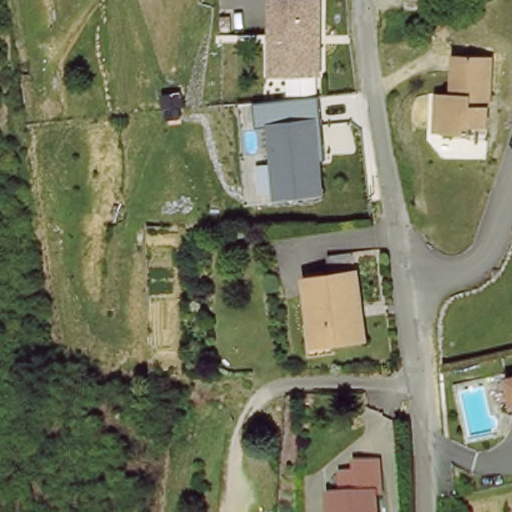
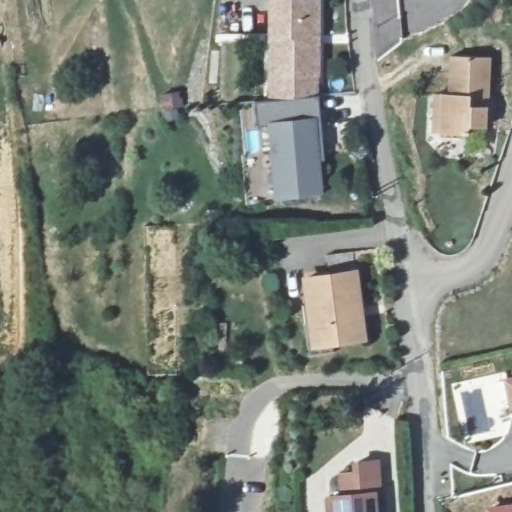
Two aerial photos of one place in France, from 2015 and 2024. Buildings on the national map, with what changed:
unchanged [(272,0),(319,0),(318,71),(316,72),(286,73),(271,72),(272,35),(272,0)]
unchanged [(475,140),(475,132),(450,131),(450,130),(440,130),(442,92),(452,92),(457,92),(460,54),(497,55),(495,95),(487,95),(487,105),(493,105),(492,125),(492,140),(475,140)]
unchanged [(268,126),(255,126),(254,101),(318,96),(320,121),(326,196),(277,199),(268,126)]
unchanged [(312,321),(312,277),(337,280),(337,257),(363,257),(362,342),(322,340),(313,339),(312,321)]
unchanged [(511,377),(512,377),(512,382),(511,377)]
unchanged [(328,502),(340,501),(338,480),(353,478),(352,468),(374,466),(378,498),(372,499),(374,512),(329,512),(328,502)]
new [(512,506),(512,512),(489,512),(489,508),(512,506)]

